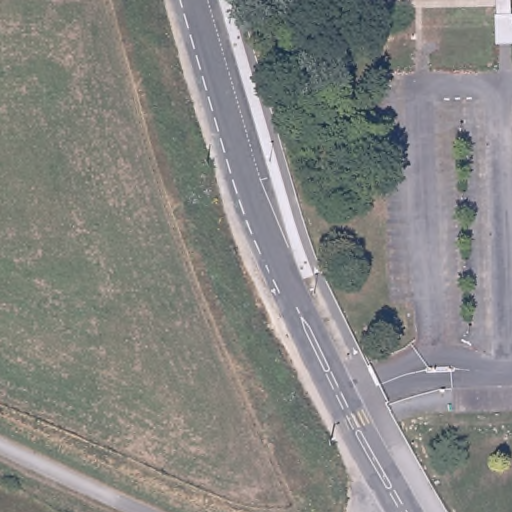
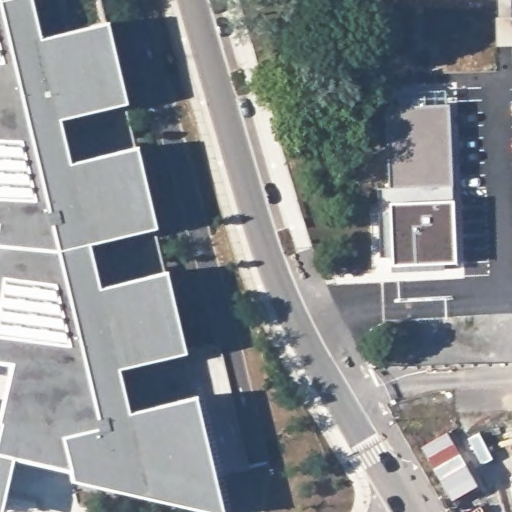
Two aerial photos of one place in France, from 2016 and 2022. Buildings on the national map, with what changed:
new [(0,376),(0,0),(103,0),(109,24),(127,103),(59,120),(69,164),(137,147),(155,229),(89,245),(98,288),(166,271),(185,352),(117,368),(129,412),(195,397),(223,512),(206,512),(72,482),(70,471),(12,458),(1,512),(0,512),(0,413),(7,377),(0,376)]
unchanged [(499,0),(512,0),(512,47),(501,47),(500,29),(499,0)]

